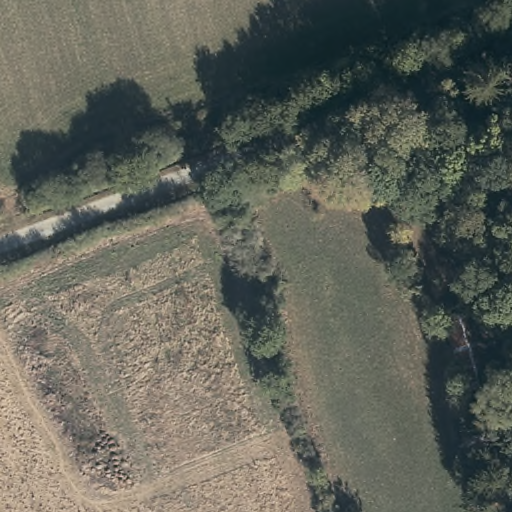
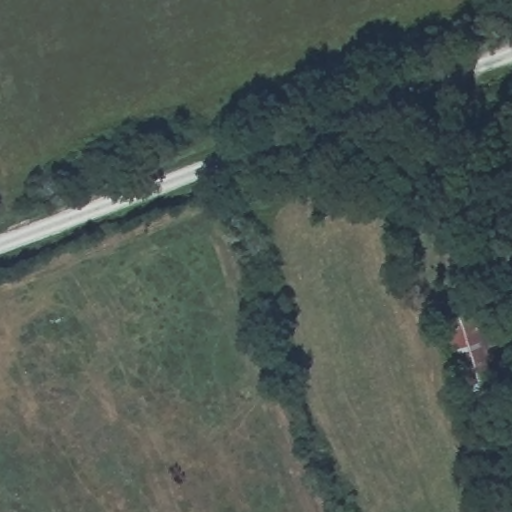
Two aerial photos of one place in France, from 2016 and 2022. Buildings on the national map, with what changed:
unchanged [(488,304),(508,370),(463,382),(439,316),(488,304)]

